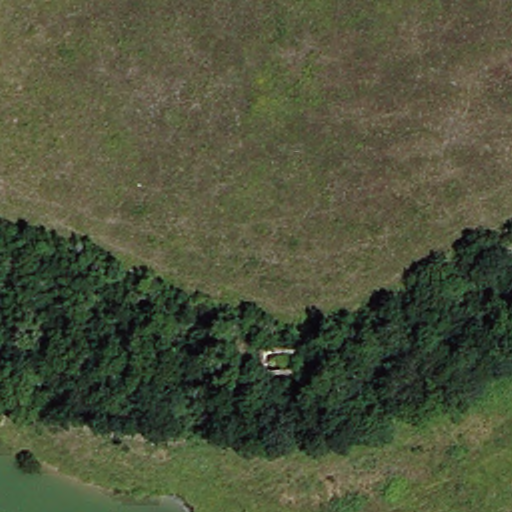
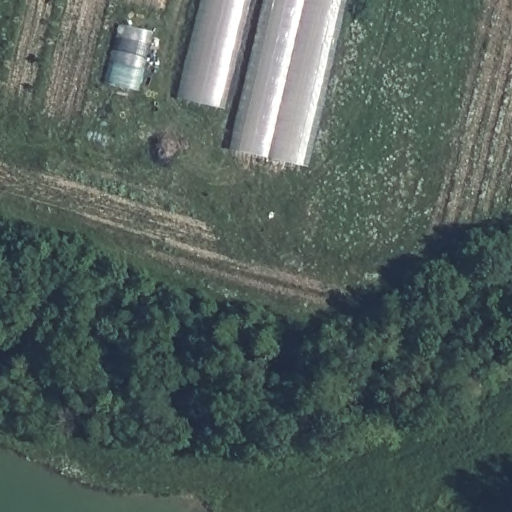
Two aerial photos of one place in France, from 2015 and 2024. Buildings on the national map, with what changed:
new [(185,99),(207,0),(248,0),(225,107),(185,99)]
new [(263,0),(345,0),(307,164),(230,147),(263,0)]
new [(121,25),(152,32),(140,89),(110,84),(121,25)]
unchanged [(301,356),(302,378),(266,378),(266,356),(301,356)]

